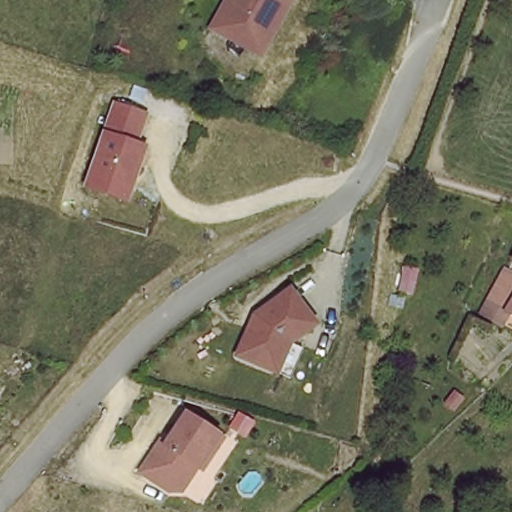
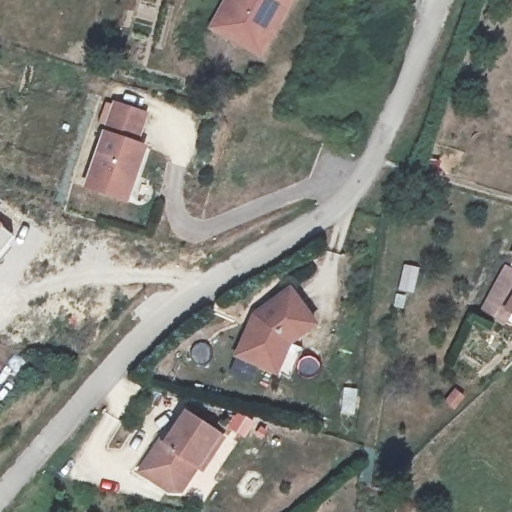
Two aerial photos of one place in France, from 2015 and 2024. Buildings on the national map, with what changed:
unchanged [(210,31),(227,0),(292,0),(289,6),(278,26),(259,59),(247,52),(210,31)]
unchanged [(140,145),(146,148),(124,207),(84,189),(109,100),(146,113),(140,145)]
new [(0,256),(0,224),(15,238),(0,256)]
unchanged [(505,256),(512,238),(512,259),(505,256)]
unchanged [(497,307),(509,284),(512,279),(512,316),(497,307)]
unchanged [(284,370),(270,365),(230,349),(247,309),(281,283),(307,316),(282,335),(296,341),(284,370)]
unchanged [(191,472),(175,498),(165,497),(139,481),(181,419),(217,443),(207,458),(196,475),(191,472)]

